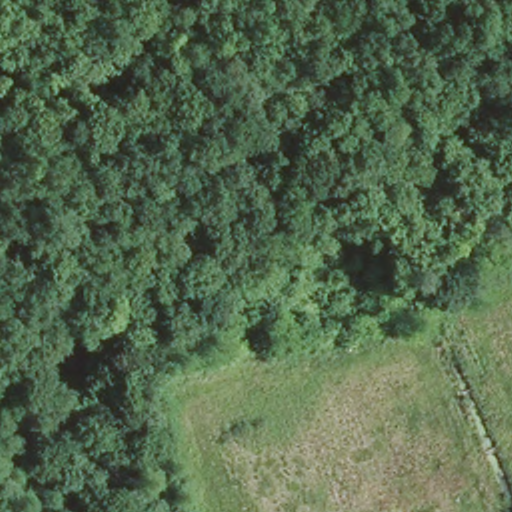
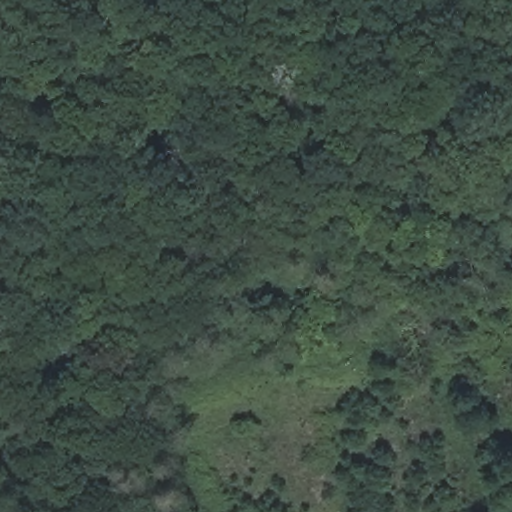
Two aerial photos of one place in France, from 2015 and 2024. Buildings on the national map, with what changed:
[]

